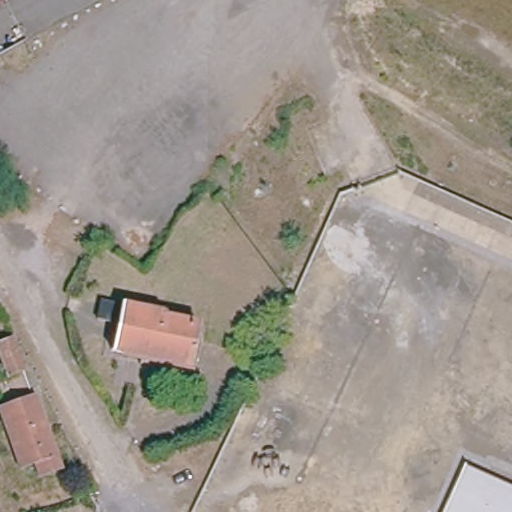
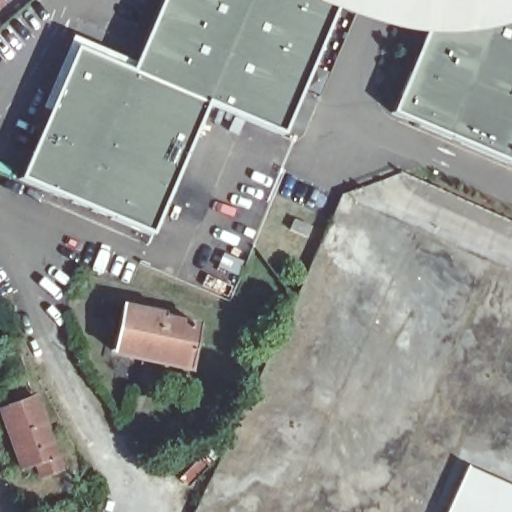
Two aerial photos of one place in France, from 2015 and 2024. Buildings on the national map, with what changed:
unchanged [(0,5),(0,0),(2,0),(4,3),(0,5)]
new [(152,234),(21,177),(75,47),(132,71),(162,0),(313,0),(321,5),(336,9),(282,133),(207,103),(152,234)]
new [(481,31),(442,34),(427,32),(385,26),(365,19),(336,9),(321,5),(313,0),(512,0),(512,24),(481,31)]
unchanged [(427,32),(442,34),(481,31),(512,24),(512,162),(393,111),(427,32)]
unchanged [(112,350),(118,323),(97,318),(102,301),(168,317),(167,322),(164,332),(150,328),(142,358),(112,350)]
unchanged [(150,328),(164,332),(167,322),(201,331),(191,371),(142,358),(150,328)]
unchanged [(24,370),(7,376),(0,356),(0,345),(13,340),(24,370)]
unchanged [(34,398),(60,471),(39,479),(34,466),(20,470),(0,410),(34,398)]
unchanged [(447,512),(467,469),(512,490),(512,512),(447,512)]

